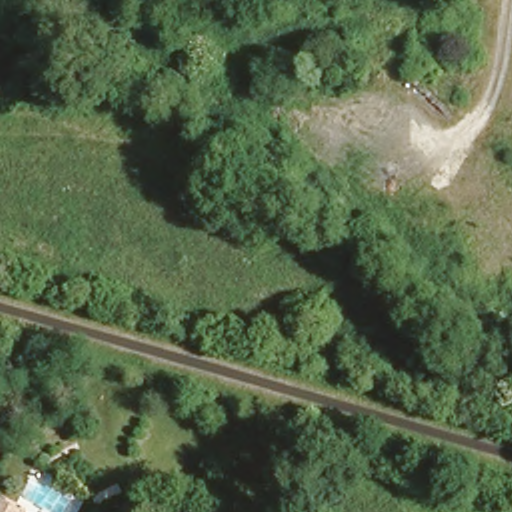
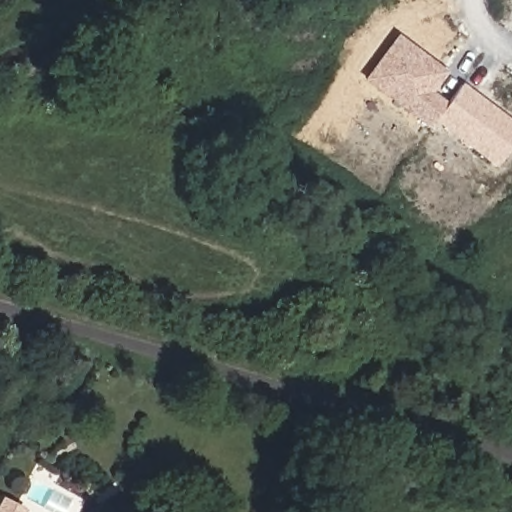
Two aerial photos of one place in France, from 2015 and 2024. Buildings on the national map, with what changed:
new [(495,167),(364,80),(398,35),(447,70),(431,92),(447,102),(462,84),(512,120),(512,145),(495,167)]
unchanged [(17,512),(0,512),(0,501),(18,508),(17,512)]

